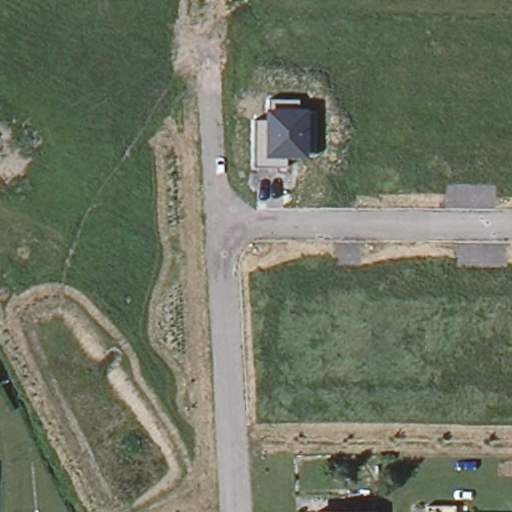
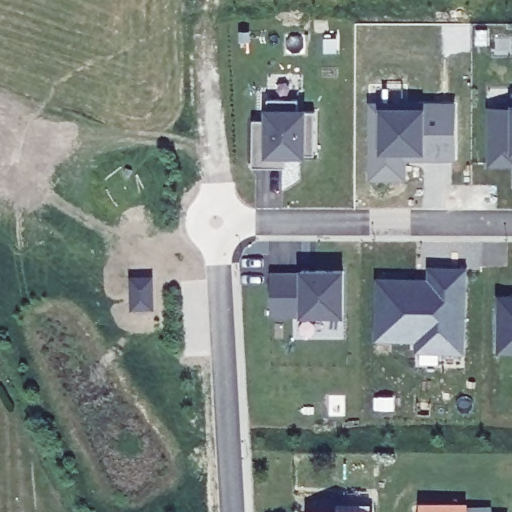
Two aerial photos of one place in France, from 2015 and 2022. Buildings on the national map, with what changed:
unchanged [(255,164),(255,119),(265,119),(264,108),(270,108),(268,99),(299,100),(299,109),(308,109),(315,111),(313,153),(305,151),(306,158),(286,157),(285,166),(255,164)]
new [(456,160),(407,161),(407,180),(370,180),(369,101),(455,101),(456,160)]
new [(512,108),(512,163),(490,163),(490,108),(512,108)]
new [(380,281),(430,283),(431,270),(465,272),(463,339),(378,337),(380,281)]
unchanged [(270,274),(301,274),(301,271),(343,271),(343,315),(270,315),(270,274)]
new [(497,293),(512,293),(512,353),(497,353),(497,293)]
unchanged [(338,505),(372,505),(371,512),(338,512),(338,505)]
unchanged [(430,511),(458,511),(458,512),(430,512),(430,511)]

